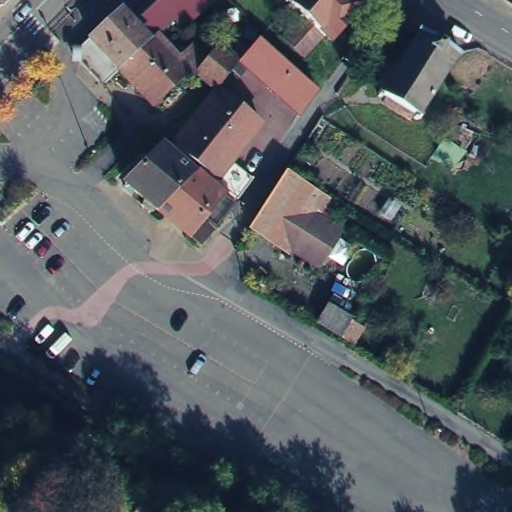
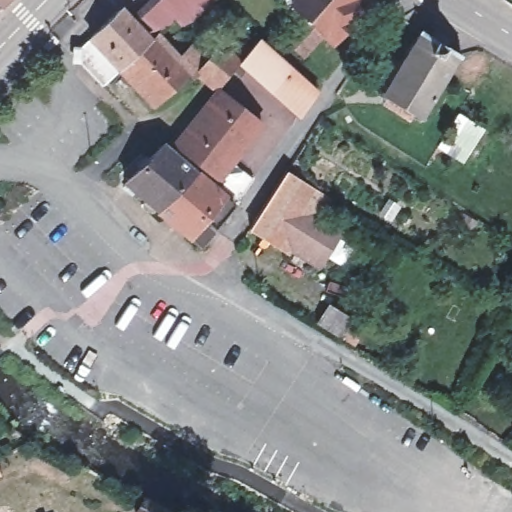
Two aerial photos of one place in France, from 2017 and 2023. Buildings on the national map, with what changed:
unchanged [(158,18),(115,61),(98,77),(68,45),(118,0),(129,13),(143,0),(198,0),(166,26),(158,18)]
unchanged [(327,32),(321,25),(301,48),(283,31),(303,7),(300,4),(296,8),(288,0),(356,0),(327,32)]
unchanged [(255,13),(263,5),(271,12),(263,20),(255,13)]
unchanged [(195,65),(188,70),(185,66),(150,97),(115,61),(158,18),(166,26),(176,45),(189,32),(204,47),(218,32),(236,50),(213,80),(211,78),(195,65)]
unchanged [(431,24),(429,28),(462,49),(464,46),(467,48),(464,51),(468,53),(466,55),(463,53),(427,111),(429,113),(427,116),(424,115),(423,118),(419,116),(422,113),(419,111),(416,116),(390,100),(393,95),(388,92),(387,95),(383,93),(385,90),(382,88),(384,85),(387,87),(424,29),(422,27),(424,24),(426,26),(428,24),(431,24)]
unchanged [(236,50),(259,28),(314,82),(296,106),(236,50)]
unchanged [(213,172),(171,136),(216,80),(244,105),(258,115),(227,153),(249,171),(234,189),(211,175),(213,172)]
unchanged [(139,198),(138,193),(141,190),(121,173),(159,135),(230,195),(209,219),(203,213),(193,225),(186,220),(183,225),(153,200),(150,203),(146,203),(139,198)]
unchanged [(332,195),(319,208),(349,225),(322,267),(251,225),(293,167),(332,195)]
unchanged [(373,327),(354,346),(311,321),(330,299),(373,327)]
unchanged [(164,512),(137,512),(146,498),(164,512)]

